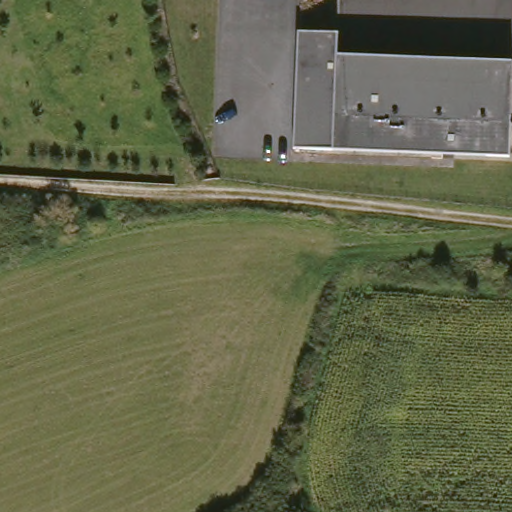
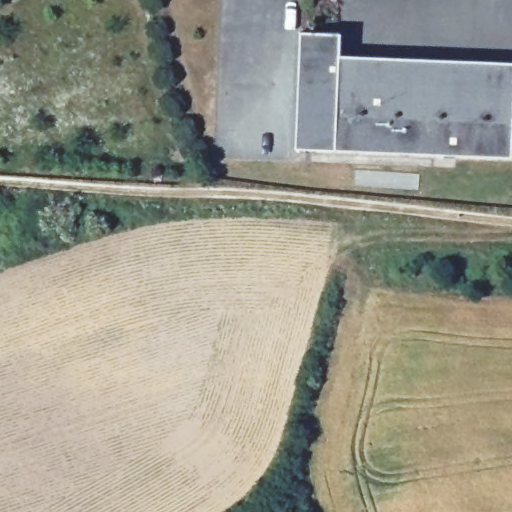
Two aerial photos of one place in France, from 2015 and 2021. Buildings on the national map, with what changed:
unchanged [(345,49),(407,52),(512,58),(512,154),(465,151),(300,141),(306,26),(347,28),(345,49)]

